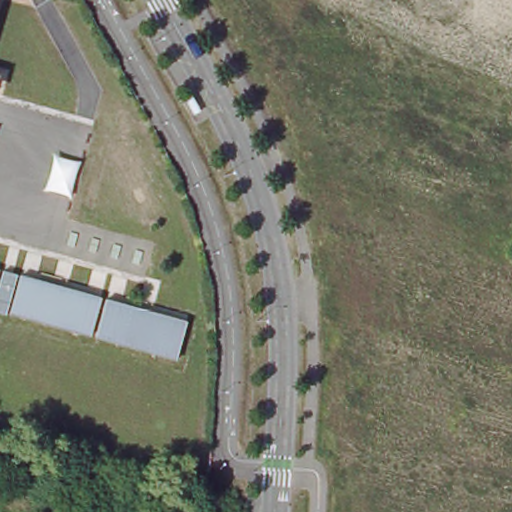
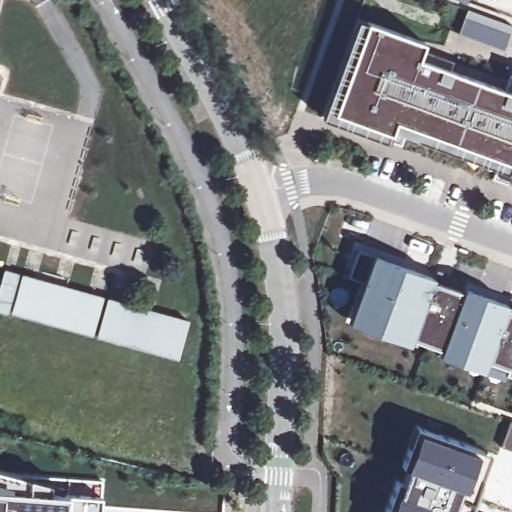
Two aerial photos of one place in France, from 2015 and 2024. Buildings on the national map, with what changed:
new [(465,0),(466,0),(466,1),(465,0)]
new [(512,26),(512,32),(508,42),(463,26),(469,10),(512,26)]
new [(359,18),(367,22),(424,43),(419,59),(500,87),(508,75),(512,77),(512,187),(506,185),(509,177),(510,172),(392,130),(391,132),(387,142),(321,117),(359,18)]
new [(436,277),(436,281),(464,290),(465,286),(508,305),(508,307),(512,309),(512,374),(505,372),(506,366),(487,360),(484,368),(439,354),(442,347),(414,337),(411,345),(348,322),(362,282),(348,278),(358,250),(374,254),(436,277)]
unchanged [(103,297),(93,337),(12,317),(21,275),(103,297)]
unchanged [(190,322),(181,360),(100,338),(108,301),(190,322)]
new [(487,453),(466,512),(386,512),(418,428),(487,453)]
new [(18,475),(17,490),(67,493),(101,496),(100,512),(0,512),(0,469),(18,475)]

